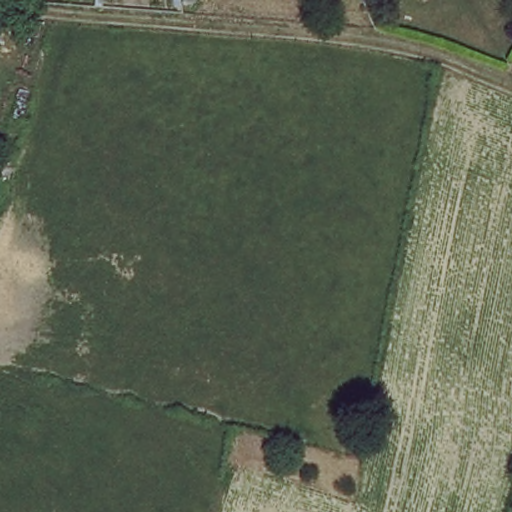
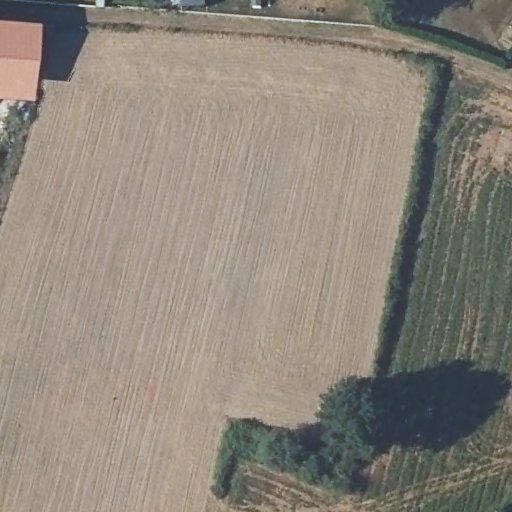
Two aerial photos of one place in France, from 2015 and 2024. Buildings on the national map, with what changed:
new [(31,95),(0,93),(0,15),(36,16),(31,95)]

